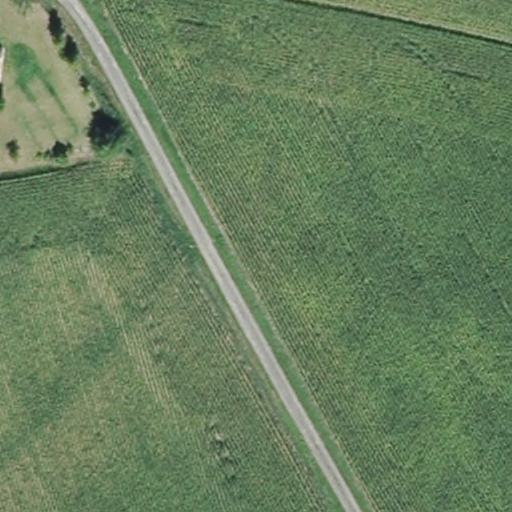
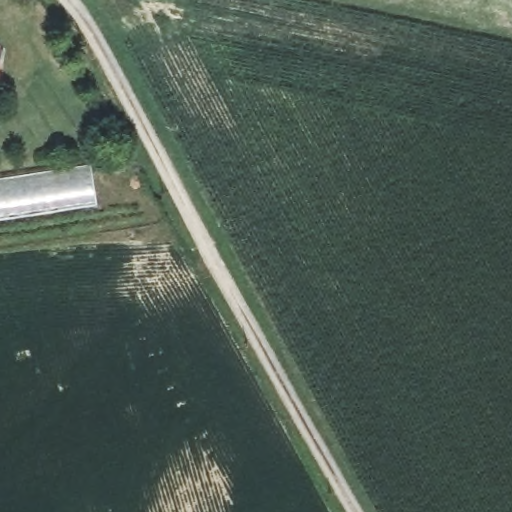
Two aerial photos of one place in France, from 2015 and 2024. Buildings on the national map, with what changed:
new [(91,165),(97,204),(0,219),(0,178),(91,165)]

